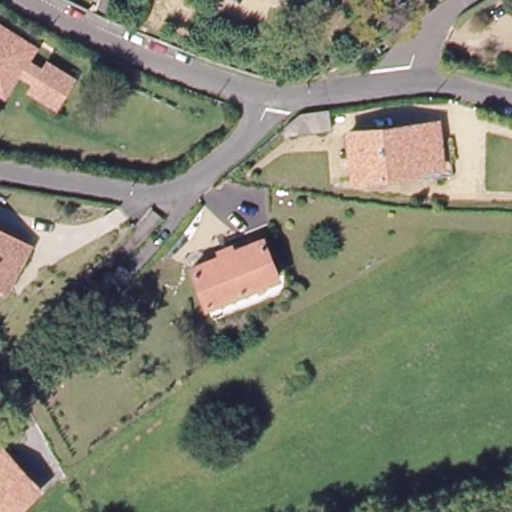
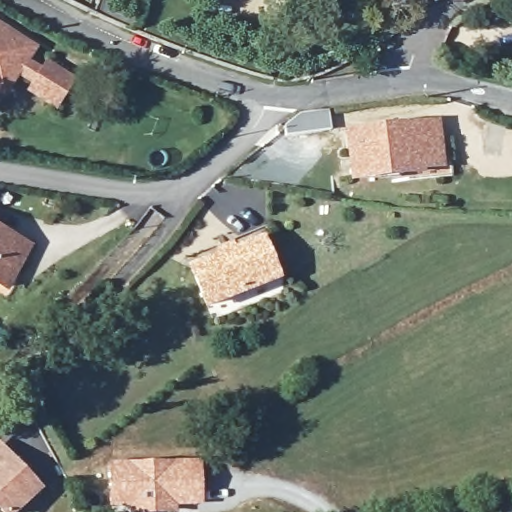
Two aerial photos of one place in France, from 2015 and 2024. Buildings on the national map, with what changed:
unchanged [(6,63),(0,73),(0,27),(37,50),(28,63),(45,74),(49,66),(75,82),(59,108),(34,92),(39,84),(22,73),(6,63)]
unchanged [(5,98),(0,95),(0,73),(6,63),(22,73),(5,98)]
unchanged [(326,111),(328,129),(287,135),(285,125),(297,115),(326,111)]
unchanged [(439,165),(420,166),(420,171),(353,178),(349,133),(435,124),(439,165)]
unchanged [(26,246),(4,288),(0,286),(0,233),(26,246)]
unchanged [(193,269),(260,242),(275,279),(207,305),(193,269)]
unchanged [(14,512),(2,512),(0,510),(0,450),(37,489),(14,512)]
new [(202,459),(203,504),(177,506),(177,512),(131,512),(131,508),(108,507),(108,462),(202,459)]

